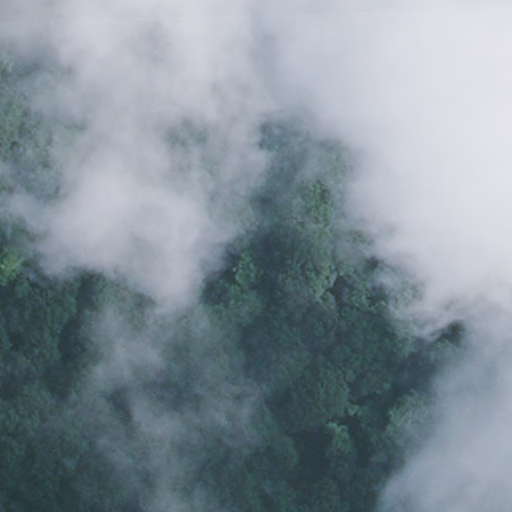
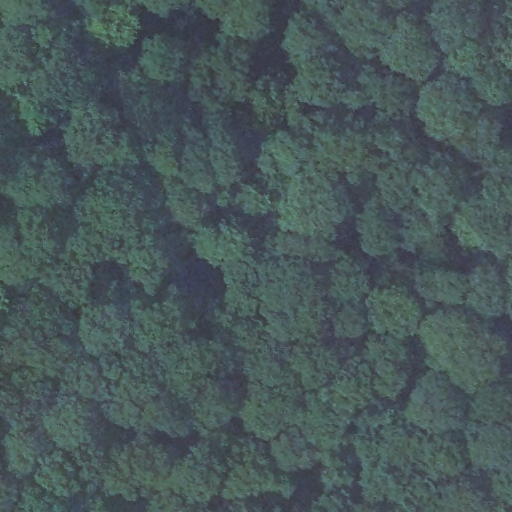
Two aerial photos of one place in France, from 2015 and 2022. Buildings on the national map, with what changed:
[]

